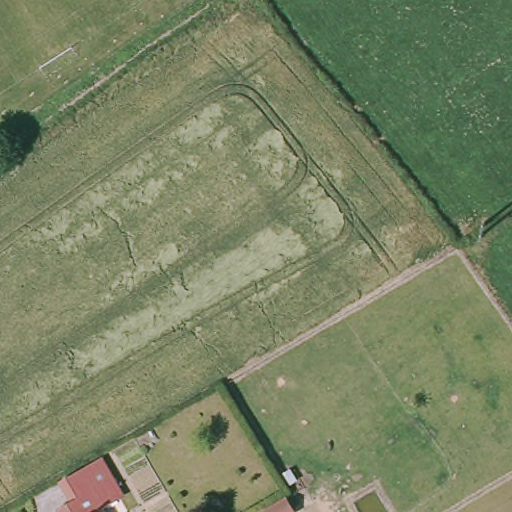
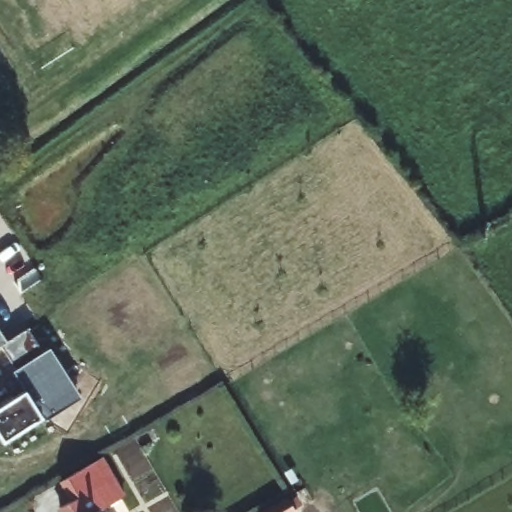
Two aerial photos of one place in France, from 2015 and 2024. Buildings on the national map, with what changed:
new [(0,406),(25,390),(13,370),(18,367),(1,343),(6,340),(30,326),(45,351),(51,347),(80,395),(42,418),(5,442),(0,435),(0,406)]
new [(1,343),(0,344),(0,331),(6,340),(1,343)]
unchanged [(72,501),(59,480),(102,455),(115,477),(110,480),(120,498),(102,508),(103,512),(58,512),(57,510),(72,501)]
new [(298,511),(297,512),(266,512),(290,498),(298,511)]

